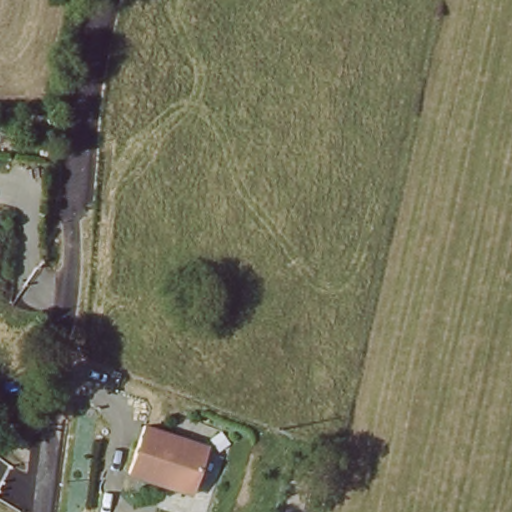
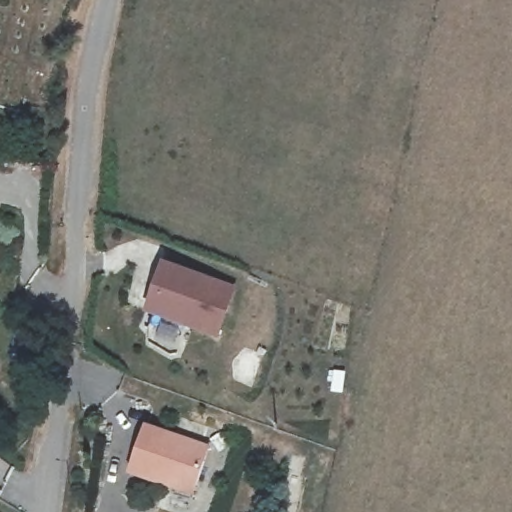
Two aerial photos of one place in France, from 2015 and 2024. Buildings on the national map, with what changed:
new [(164,264),(234,289),(218,334),(148,310),(164,264)]
unchanged [(208,446),(194,497),(128,480),(145,427),(208,446)]

